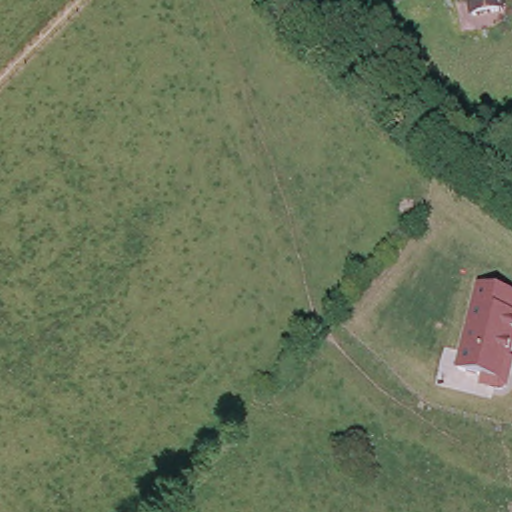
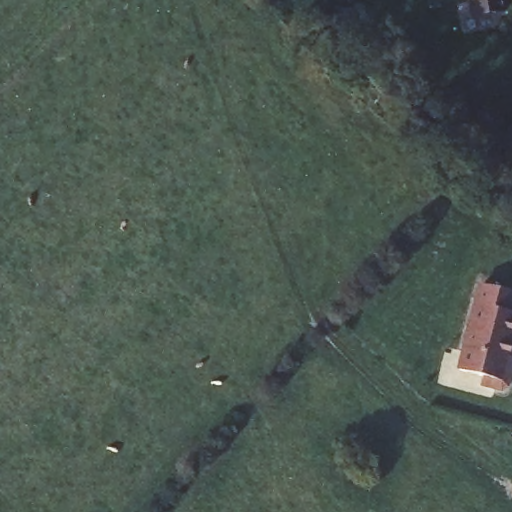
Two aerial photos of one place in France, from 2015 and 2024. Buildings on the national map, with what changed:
unchanged [(479,0),(463,2),(463,0),(479,0)]
unchanged [(512,291),(512,364),(506,392),(482,385),(482,378),(460,370),(478,283),(512,291)]

